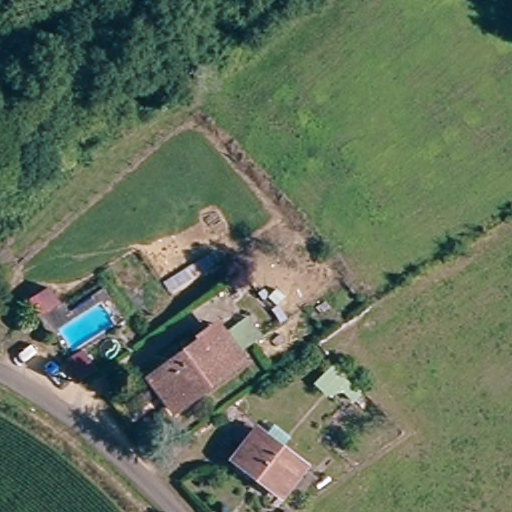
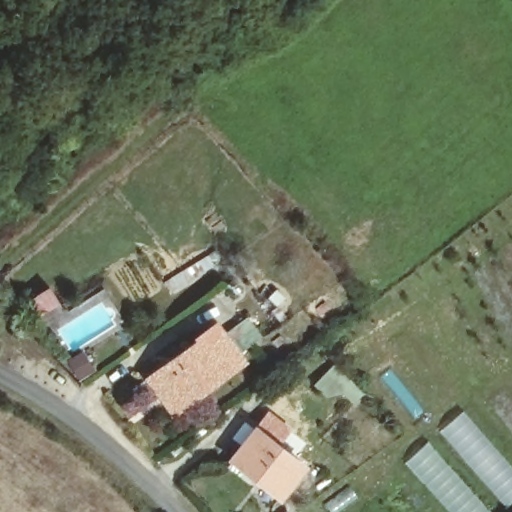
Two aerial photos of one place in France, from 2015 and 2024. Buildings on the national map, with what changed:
unchanged [(203,341),(216,330),(222,338),(242,360),(182,411),(156,381),(203,341)]
new [(512,465),(512,502),(506,506),(440,430),(463,411),(512,465)]
unchanged [(285,499),(237,466),(257,438),(305,471),(285,499)]
new [(492,512),(450,512),(404,463),(428,441),(492,512)]

